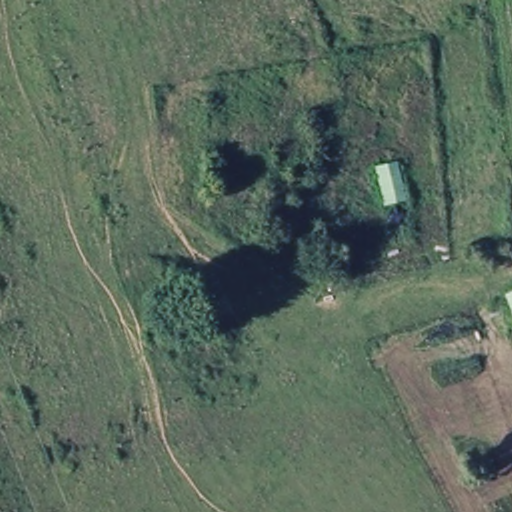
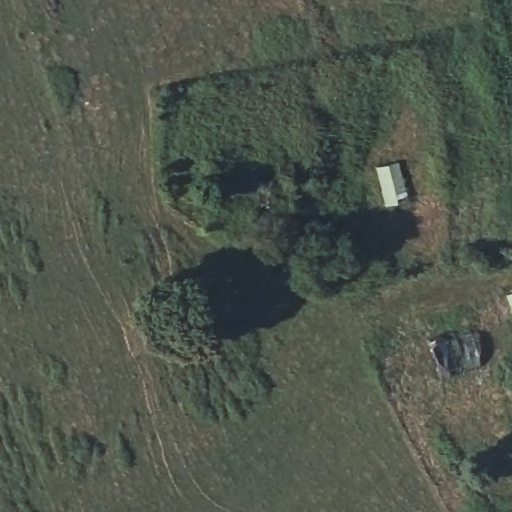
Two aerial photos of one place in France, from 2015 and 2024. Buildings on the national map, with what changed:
unchanged [(512,289),(512,316),(503,292),(512,289)]

